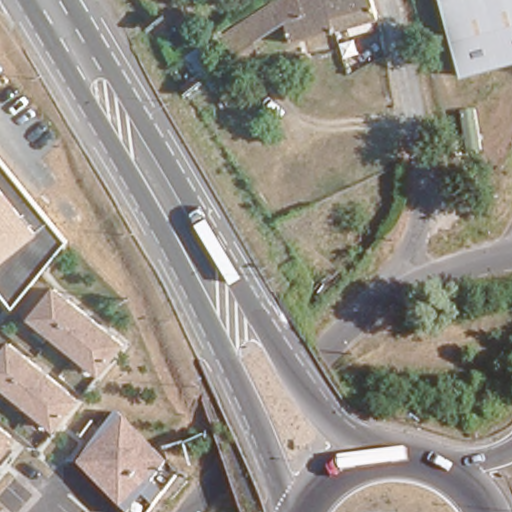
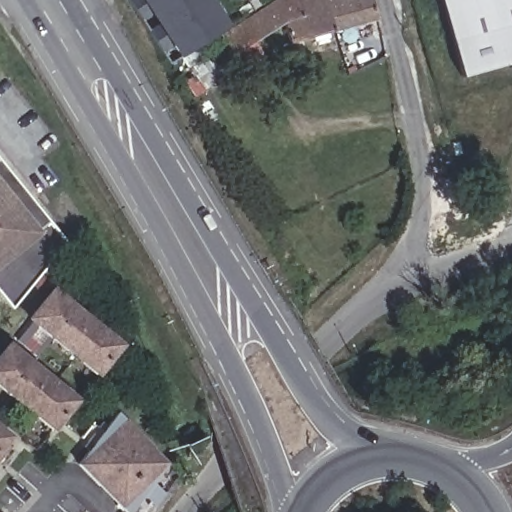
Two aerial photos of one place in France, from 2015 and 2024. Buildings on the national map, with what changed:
new [(227,25),(180,57),(171,44),(162,50),(149,30),(157,24),(150,13),(140,18),(130,1),(131,0),(211,0),(227,25)]
demolished [(145,8),(140,0),(159,0),(145,8)]
unchanged [(322,33),(278,46),(272,24),(240,45),(229,27),(271,0),(313,0),(322,33)]
unchanged [(363,21),(322,33),(313,0),(356,0),(363,21)]
unchanged [(463,79),(440,0),(512,0),(512,65),(463,79)]
unchanged [(0,291),(0,158),(68,242),(14,307),(0,291)]
unchanged [(99,377),(28,319),(54,288),(125,344),(99,377)]
unchanged [(0,388),(0,353),(10,341),(81,400),(54,432),(0,388)]
unchanged [(128,512),(81,463),(120,411),(179,473),(150,512),(128,512)]
unchanged [(0,424),(15,436),(0,454),(0,424)]

